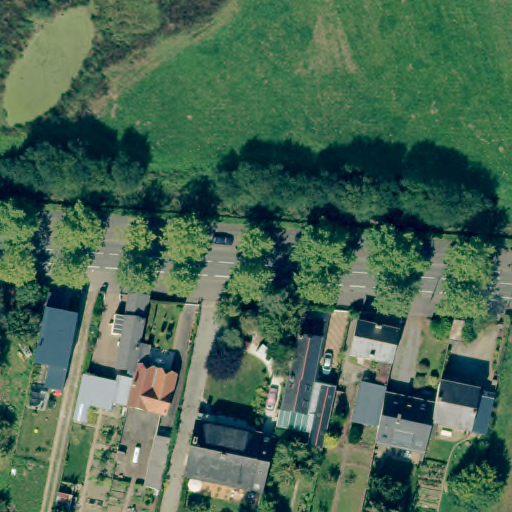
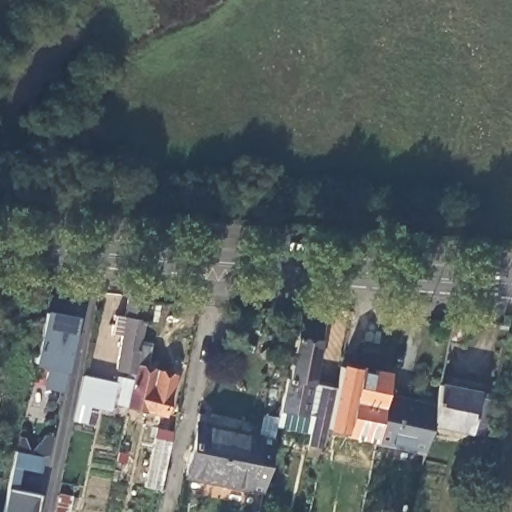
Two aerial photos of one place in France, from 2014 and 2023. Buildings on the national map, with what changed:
unchanged [(152,296),(142,344),(130,405),(115,402),(119,382),(120,376),(130,377),(132,368),(119,365),(125,337),(116,335),(121,313),(131,316),(134,294),(152,296)]
unchanged [(45,311),(48,297),(66,301),(65,315),(76,317),(62,394),(45,391),(49,371),(34,369),(45,311)]
unchanged [(351,350),(358,316),(374,320),(376,307),(400,308),(397,325),(389,359),(351,350)]
unchanged [(290,380),(303,315),(308,316),(308,322),(321,325),(307,386),(333,392),(324,436),(276,426),(286,380),(290,380)]
unchanged [(153,346),(151,365),(177,371),(169,412),(130,405),(142,344),(153,346)]
unchanged [(119,382),(115,402),(114,410),(95,406),(92,419),(77,415),(85,376),(119,382)]
unchanged [(357,421),(366,381),(390,386),(388,392),(381,426),(357,421)]
unchanged [(435,423),(441,395),(443,381),(502,393),(493,435),(435,423)]
unchanged [(429,449),(378,438),(381,426),(388,392),(420,399),(422,390),(441,395),(435,423),(429,449)]
unchanged [(213,480),(187,474),(199,420),(225,426),(213,480)]
unchanged [(273,435),(261,490),(213,480),(225,426),(273,435)]
unchanged [(161,492),(146,489),(156,438),(171,441),(161,492)]
new [(46,459),(42,473),(24,470),(19,490),(43,495),(40,512),(5,512),(15,467),(17,453),(46,459)]

